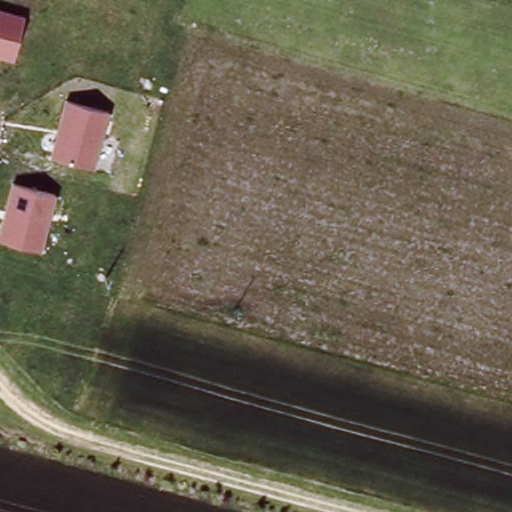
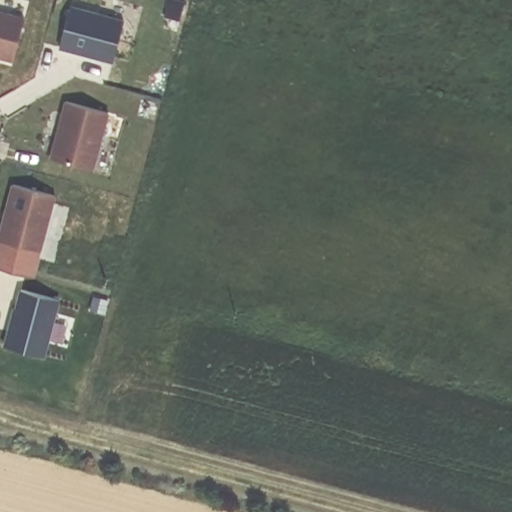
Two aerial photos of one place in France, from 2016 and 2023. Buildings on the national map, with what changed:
new [(112,62),(61,47),(71,5),(124,19),(112,62)]
unchanged [(0,56),(0,8),(26,16),(14,60),(0,56)]
unchanged [(50,154),(65,99),(111,110),(94,166),(50,154)]
unchanged [(42,250),(0,239),(0,222),(10,182),(57,194),(42,250)]
new [(33,277),(0,268),(0,239),(42,250),(33,277)]
new [(45,356),(3,345),(12,307),(15,308),(20,291),(60,301),(45,356)]

